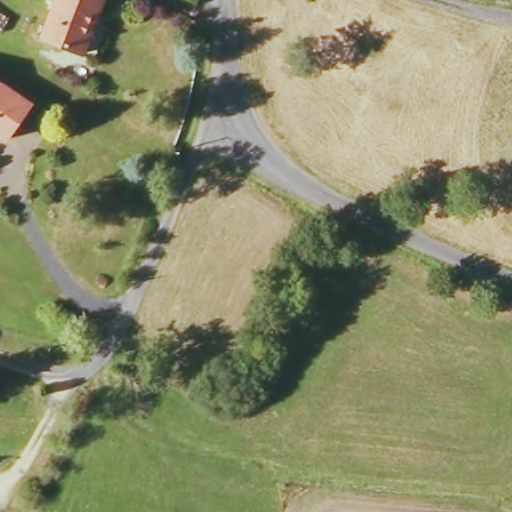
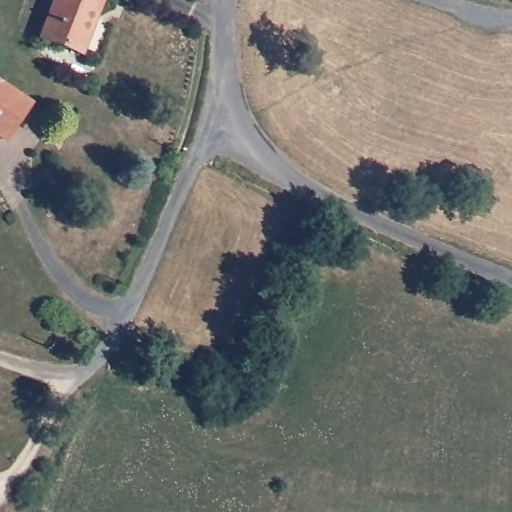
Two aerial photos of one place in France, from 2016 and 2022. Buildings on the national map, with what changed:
unchanged [(89,62),(41,45),(55,0),(87,0),(107,7),(89,62)]
unchanged [(35,101),(10,141),(0,134),(0,78),(35,101)]

